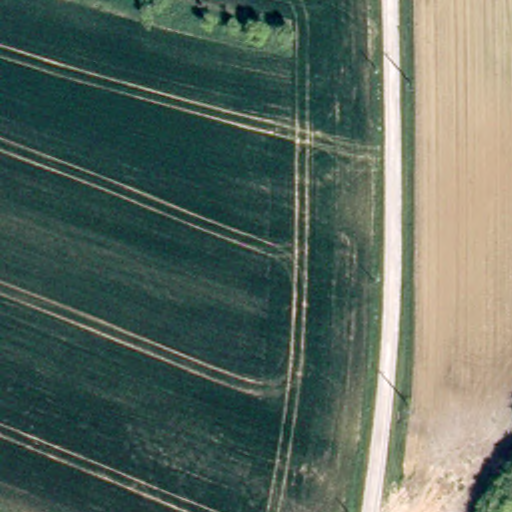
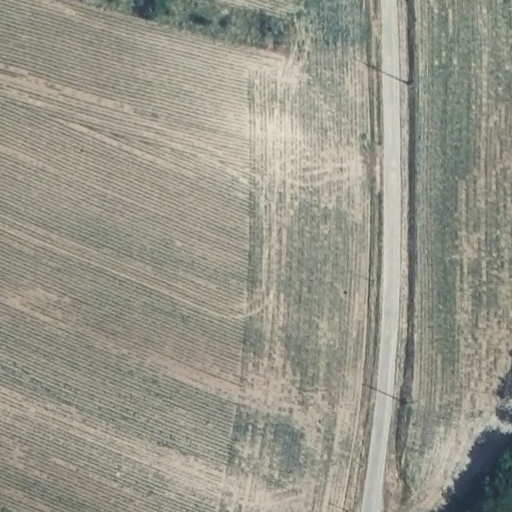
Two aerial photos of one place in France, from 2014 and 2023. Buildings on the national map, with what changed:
[]

